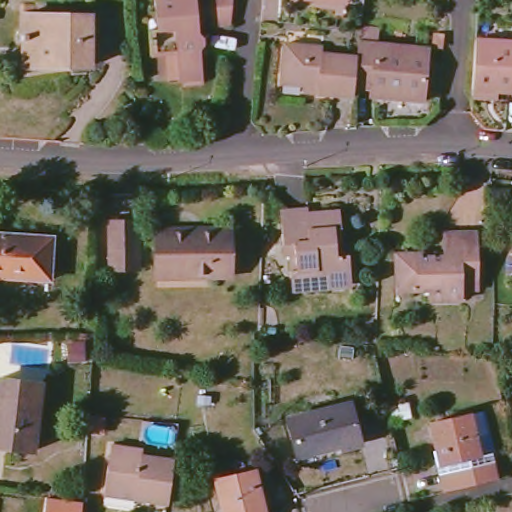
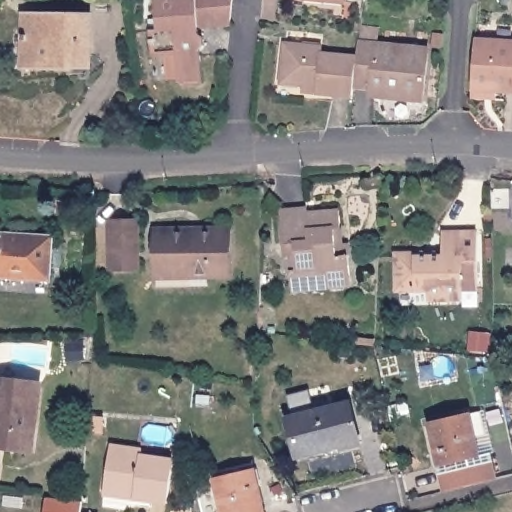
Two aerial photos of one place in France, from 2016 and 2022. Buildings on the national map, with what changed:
unchanged [(174,77),(176,60),(164,49),(159,49),(162,15),(168,16),(169,0),(234,0),(233,18),(232,33),(231,33),(201,30),(201,36),(204,40),(204,47),(200,52),(197,85),(180,83),(174,77)]
unchanged [(304,0),(348,0),(348,4),(304,0)]
unchanged [(26,61),(26,17),(33,17),(90,17),(90,67),(69,67),(68,62),(36,61),(26,61)]
unchanged [(390,87),(381,86),(350,82),(353,52),(355,36),(385,39),(426,44),(420,95),(400,94),(390,93),(390,87)]
unchanged [(473,97),(474,89),(477,39),(512,41),(512,90),(498,90),(497,99),(474,97),(473,97)]
unchanged [(279,78),(283,40),(318,42),(318,49),(353,52),(350,82),(349,92),(308,89),(298,87),(299,80),(279,78)]
unchanged [(496,207),(496,187),(512,187),(512,207),(496,207)]
unchanged [(326,287),(326,285),(305,286),(303,268),(296,268),(292,242),(280,242),(278,210),(303,207),(304,212),(335,210),(339,242),(345,243),(345,255),(348,279),(348,285),(326,287)]
unchanged [(111,222),(138,222),(139,269),(111,269),(111,222)]
unchanged [(158,270),(157,230),(232,229),(231,276),(193,276),(157,277),(158,270)]
unchanged [(424,288),(395,288),(394,253),(412,253),(413,257),(439,256),(440,232),(474,232),(474,288),(458,287),(458,297),(424,298),(424,288)]
unchanged [(0,277),(0,235),(51,238),(48,280),(0,277)]
unchanged [(0,447),(0,378),(41,383),(33,451),(0,447)]
unchanged [(289,417),(351,403),(361,443),(341,449),(340,446),(298,456),(289,417)]
unchanged [(468,411),(485,408),(500,477),(443,492),(427,421),(468,411)]
unchanged [(112,446),(142,450),(142,455),(175,459),(169,503),(136,500),(105,496),(106,489),(112,446)]
unchanged [(216,479),(250,472),(254,486),(260,485),(266,512),(224,512),(216,479)]
unchanged [(47,500),(81,503),(80,512),(46,512),(47,500)]

